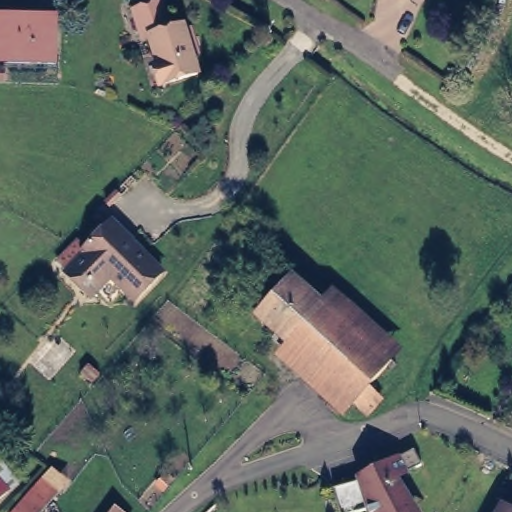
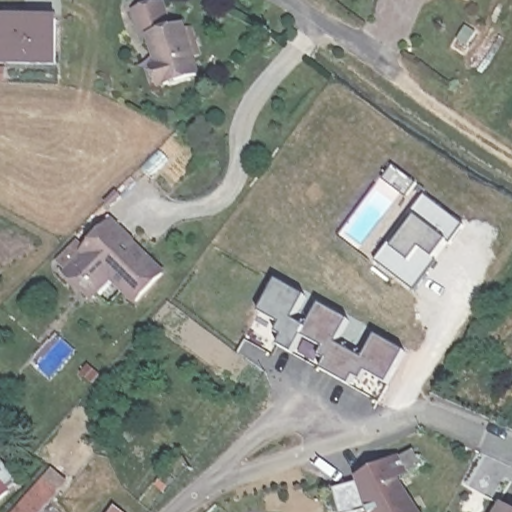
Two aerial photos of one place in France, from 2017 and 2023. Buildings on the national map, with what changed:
unchanged [(53,60),(0,58),(0,16),(54,18),(53,60)]
unchanged [(160,66),(152,69),(142,39),(170,29),(180,57),(192,54),(193,58),(199,56),(207,81),(200,83),(206,100),(173,111),(167,94),(170,94),(160,66)]
new [(387,244),(392,247),(415,217),(410,214),(425,195),(465,226),(450,245),(447,242),(424,272),(427,275),(414,291),(375,261),(387,244)]
unchanged [(87,293),(82,289),(65,274),(85,252),(83,251),(111,222),(130,240),(126,245),(134,254),(140,251),(162,273),(137,300),(115,279),(97,295),(87,293)]
unchanged [(337,290),(357,306),(347,318),(395,360),(373,386),(385,398),(370,415),(306,357),(280,336),(259,317),(290,283),(293,280),(323,305),(327,300),(337,290)]
unchanged [(395,473),(415,512),(380,512),(377,506),(372,510),(368,504),(341,511),(333,483),(364,475),(365,476),(375,473),(375,470),(375,468),(375,466),(376,464),(377,463),(414,445),(422,460),(395,473)]
unchanged [(0,496),(0,461),(17,481),(0,496)]
unchanged [(60,489),(41,512),(23,512),(20,510),(45,477),(60,489)]
unchanged [(169,483),(163,490),(157,485),(163,478),(169,483)]
unchanged [(502,500),(512,506),(512,512),(495,512),(502,500)]
unchanged [(115,505),(125,512),(109,512),(115,505)]

